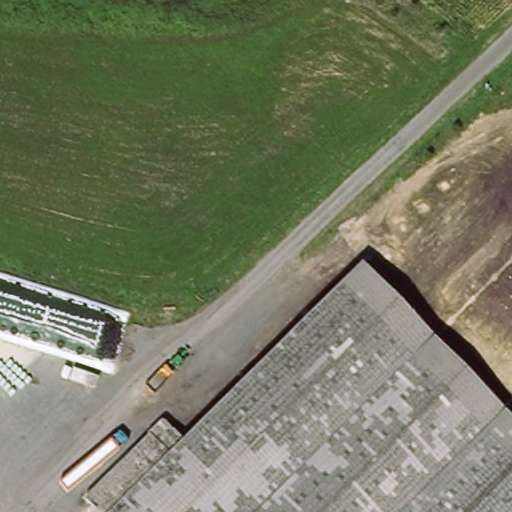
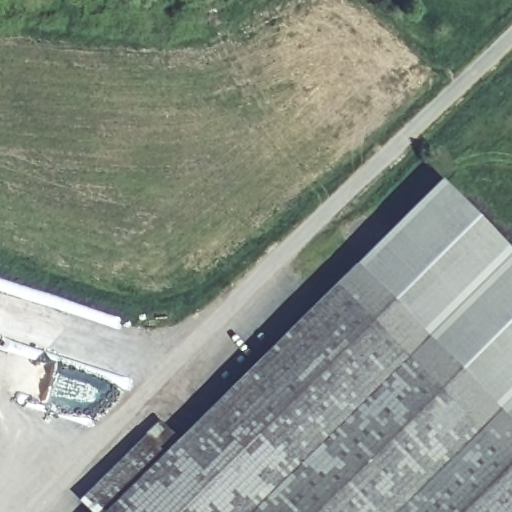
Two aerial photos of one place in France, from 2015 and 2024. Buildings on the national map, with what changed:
new [(510,422),(440,346),(372,273),(185,447),(181,442),(445,184),(512,253),(512,425),(510,422)]
unchanged [(440,346),(263,512),(116,512),(372,273),(440,346)]
unchanged [(510,422),(414,512),(263,512),(440,346),(510,422)]
unchanged [(414,512),(510,422),(512,425),(512,512),(414,512)]
unchanged [(92,512),(83,503),(148,438),(162,423),(185,447),(116,512),(92,512)]

